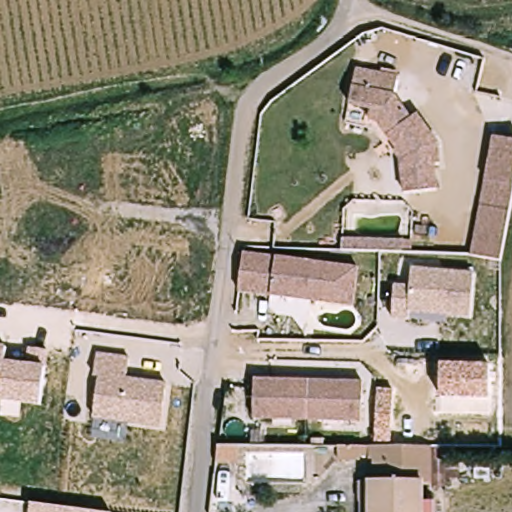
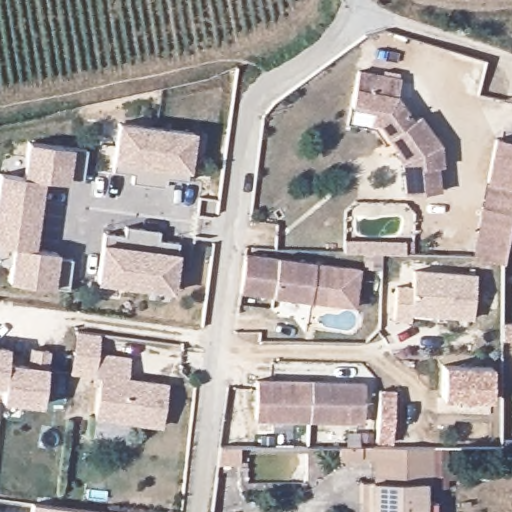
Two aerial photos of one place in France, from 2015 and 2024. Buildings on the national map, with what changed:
unchanged [(397,76),(394,94),(411,118),(417,113),(438,142),(441,163),(436,163),(439,188),(406,192),(401,158),(396,150),(398,148),(376,120),(369,119),(371,108),(349,104),(355,69),(397,76)]
new [(116,123),(153,128),(146,186),(129,183),(131,174),(110,172),(116,123)]
new [(153,128),(191,133),(184,181),(164,179),(163,188),(146,186),(153,128)]
unchanged [(497,136),(512,139),(512,228),(507,260),(477,256),(497,136)]
new [(25,143),(83,151),(79,181),(64,179),(63,184),(39,180),(21,178),(25,143)]
new [(39,180),(35,215),(0,211),(0,175),(21,178),(39,180)]
new [(30,250),(12,247),(0,246),(0,211),(35,215),(30,250)]
new [(102,234),(122,236),(123,227),(140,230),(133,287),(95,282),(102,234)]
new [(140,230),(157,232),(156,241),(176,243),(170,292),(133,287),(140,230)]
unchanged [(402,256),(403,245),(412,245),(411,257),(402,256)]
new [(12,247),(30,250),(54,253),(53,258),(69,260),(65,290),(8,282),(12,247)]
unchanged [(361,269),(355,307),(241,289),(246,251),(361,269)]
unchanged [(409,323),(393,322),(395,290),(411,291),(413,273),(474,278),(471,320),(446,318),(410,316),(409,323)]
unchanged [(502,323),(512,323),(512,340),(501,340),(502,323)]
unchanged [(28,364),(30,348),(49,351),(45,367),(42,406),(1,399),(3,385),(0,385),(0,346),(8,346),(5,361),(28,364)]
unchanged [(129,379),(166,385),(158,427),(95,416),(99,377),(94,377),(98,353),(129,357),(129,379)]
unchanged [(489,366),(489,398),(440,397),(441,364),(489,366)]
unchanged [(308,380),(306,419),(251,416),(253,377),(308,380)]
unchanged [(308,380),(361,383),(359,422),(306,419),(308,380)]
unchanged [(402,390),(401,441),(386,441),(387,390),(402,390)]
unchanged [(228,445),(227,458),(217,457),(218,445),(228,445)]
unchanged [(370,446),(371,459),(349,458),(349,446),(370,446)]
unchanged [(440,446),(440,485),(432,485),(432,512),(380,512),(380,501),(370,501),(370,481),(380,481),(380,446),(383,446),(440,446)]
unchanged [(46,506),(62,508),(73,510),(78,510),(83,511),(88,512),(29,512),(30,504),(46,506)]

